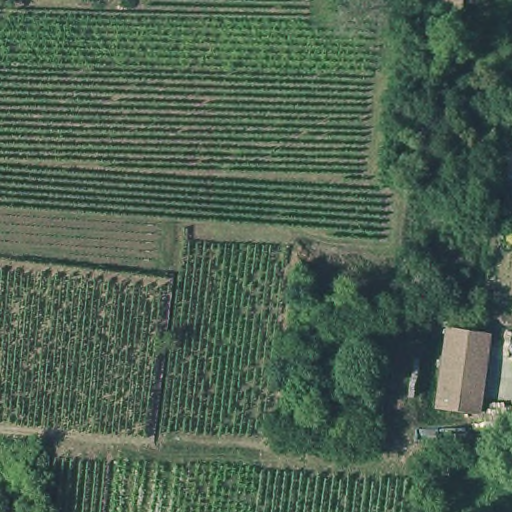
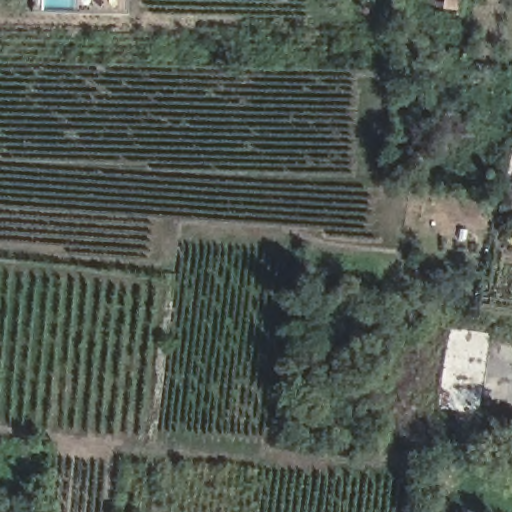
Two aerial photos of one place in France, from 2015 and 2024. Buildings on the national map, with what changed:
unchanged [(461,8),(462,3),(452,1),(452,0),(468,0),(467,8),(461,8)]
unchanged [(462,46),(462,53),(454,52),(455,45),(462,46)]
unchanged [(497,328),(485,407),(447,401),(458,323),(497,328)]

